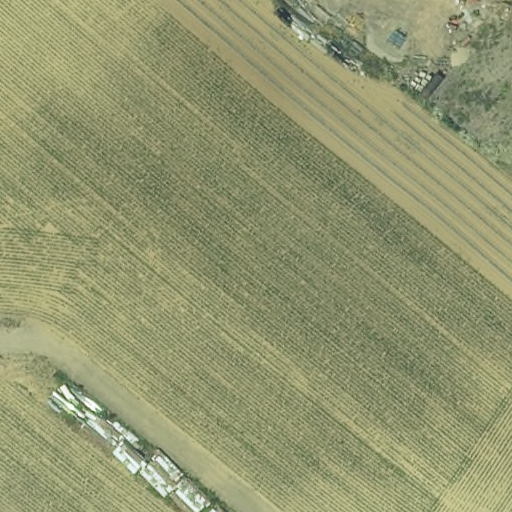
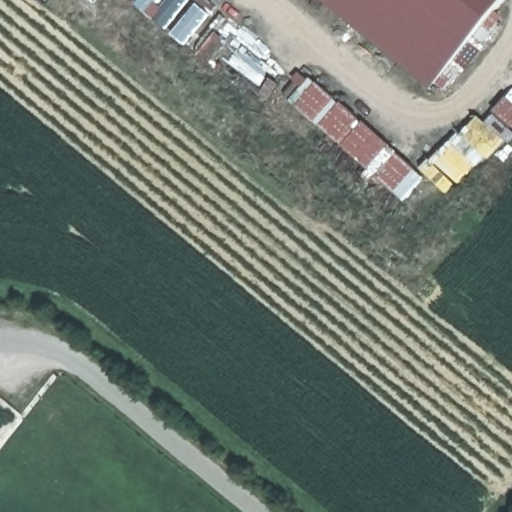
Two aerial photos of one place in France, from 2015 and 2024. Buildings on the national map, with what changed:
new [(318,0),(501,0),(427,89),(318,0)]
new [(423,179),(402,203),(294,105),(313,83),(392,147),(423,179)]

